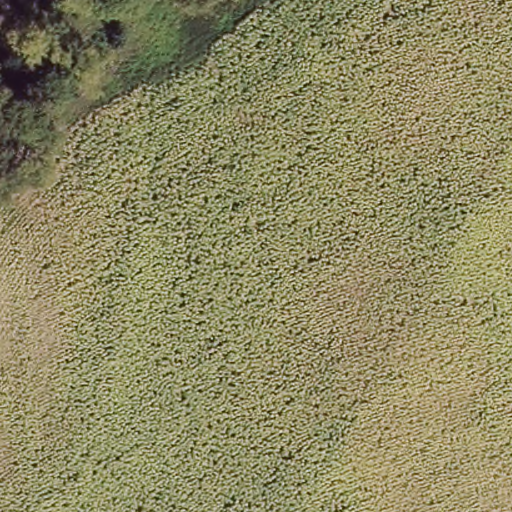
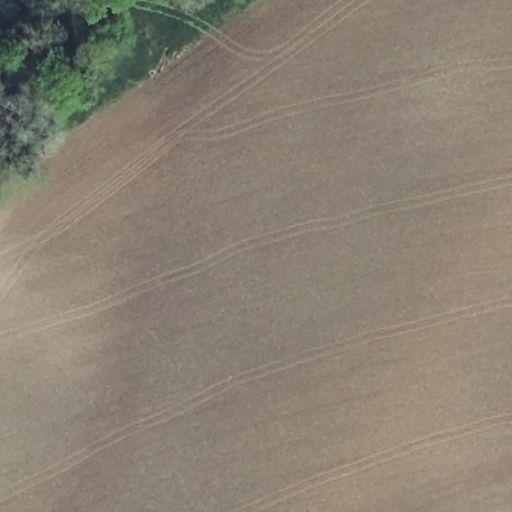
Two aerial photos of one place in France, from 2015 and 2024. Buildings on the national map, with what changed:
[]

